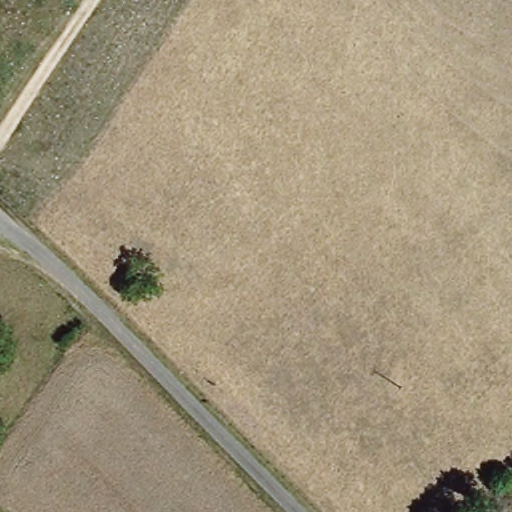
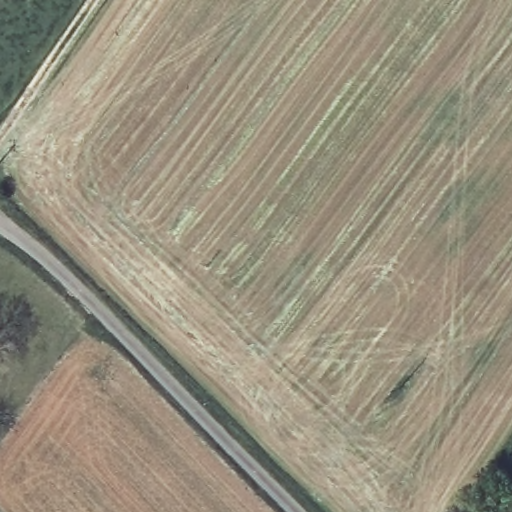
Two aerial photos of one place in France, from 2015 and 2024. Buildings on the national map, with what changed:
[]

